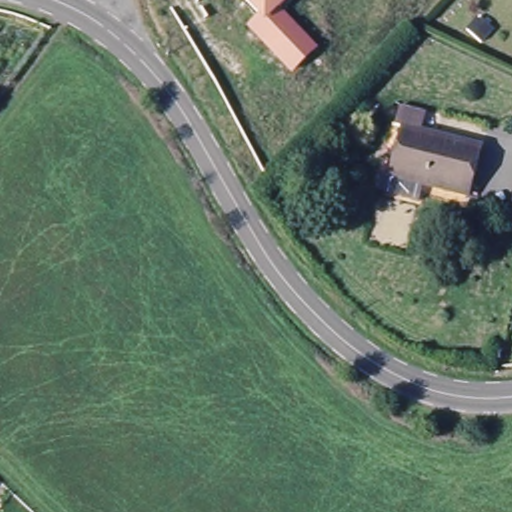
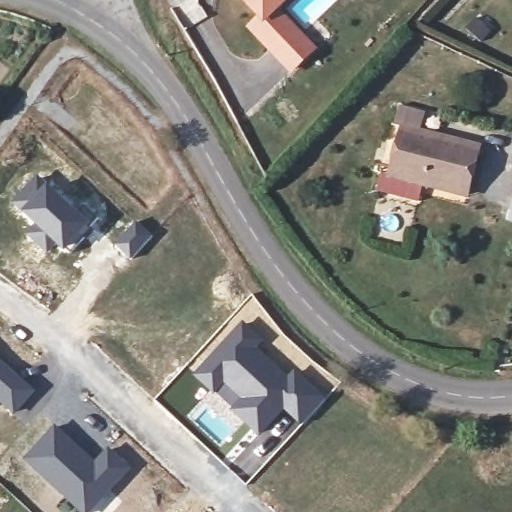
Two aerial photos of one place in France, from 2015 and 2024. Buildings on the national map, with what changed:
unchanged [(318,51),(297,72),(254,30),(265,19),(246,0),(286,0),(276,9),(318,51)]
unchanged [(375,174),(386,175),(397,127),(380,123),(386,96),(421,104),(415,132),(474,146),(463,194),(419,183),(416,200),(372,189),(375,174)]
new [(37,174),(92,224),(66,253),(56,244),(47,253),(26,234),(35,224),(11,200),(37,174)]
unchanged [(503,235),(507,222),(512,204),(512,238),(503,235)]
new [(137,220),(153,235),(131,259),(115,244),(137,220)]
new [(243,320),(265,340),(260,346),(289,374),(296,368),(328,397),(302,426),(284,410),(259,436),(192,372),(243,320)]
new [(14,414),(0,401),(0,355),(37,390),(14,414)]
new [(57,424),(95,459),(110,444),(133,468),(106,499),(92,512),(80,512),(24,459),(57,424)]

